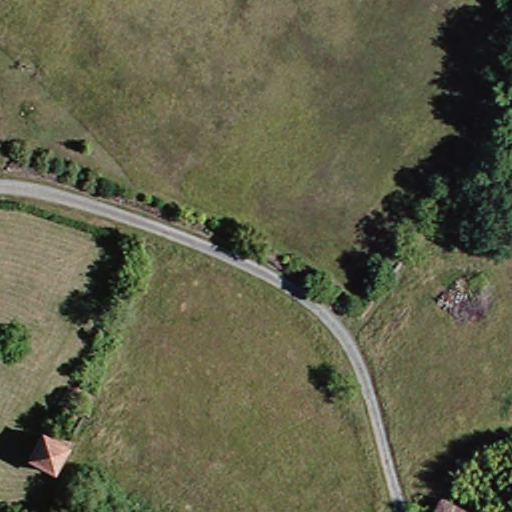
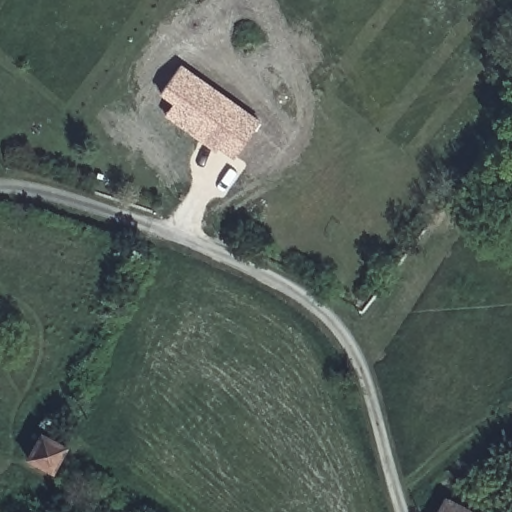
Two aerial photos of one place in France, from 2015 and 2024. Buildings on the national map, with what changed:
new [(233,158),(219,147),(216,153),(165,115),(173,104),(160,93),(181,64),(261,120),(233,158)]
unchanged [(25,459),(40,432),(65,445),(50,473),(25,459)]
unchanged [(479,512),(440,512),(449,497),(479,512)]

